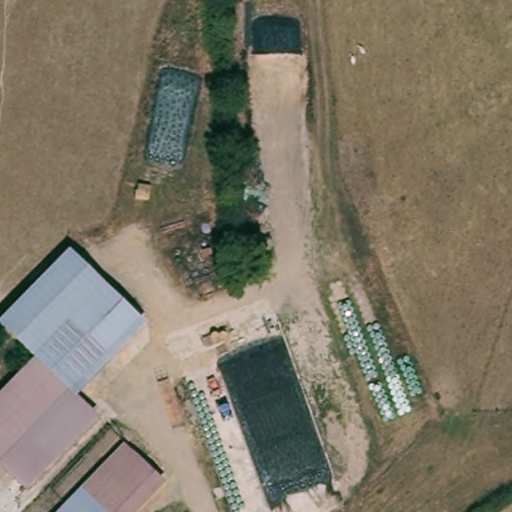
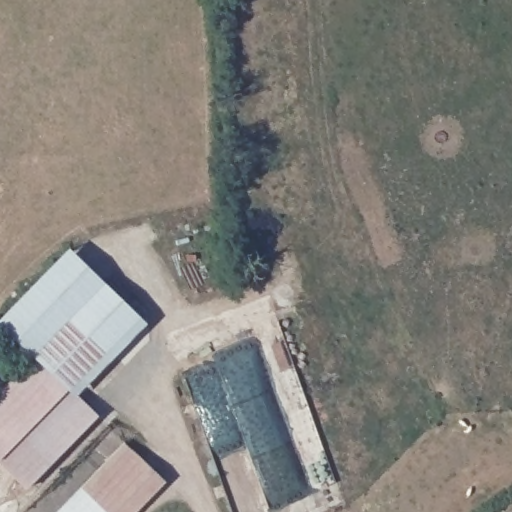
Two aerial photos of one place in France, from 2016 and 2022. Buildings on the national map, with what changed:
unchanged [(145,325),(76,401),(99,419),(28,494),(0,466),(0,396),(33,362),(0,325),(0,319),(67,249),(145,325)]
unchanged [(163,478),(131,512),(73,512),(132,449),(163,478)]

